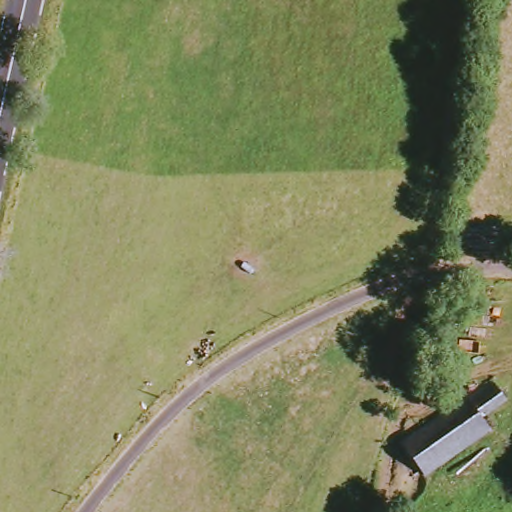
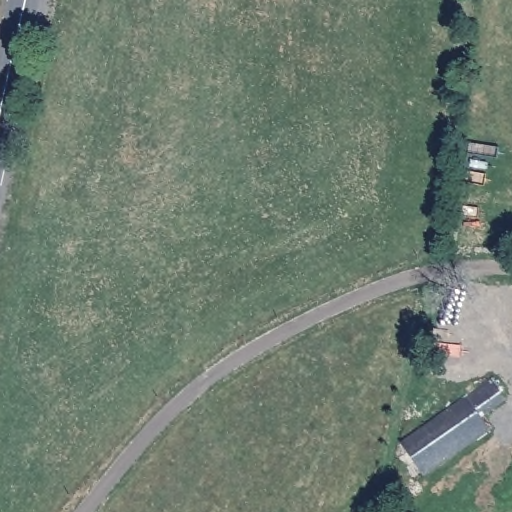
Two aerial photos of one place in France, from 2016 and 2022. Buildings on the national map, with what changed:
unchanged [(423,477),(404,444),(494,381),(510,402),(485,418),(493,431),(423,477)]

